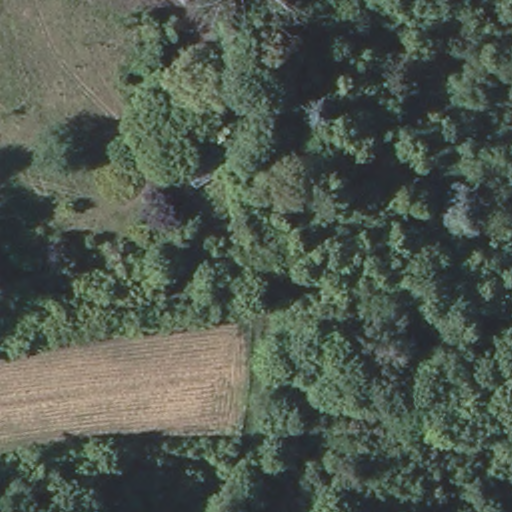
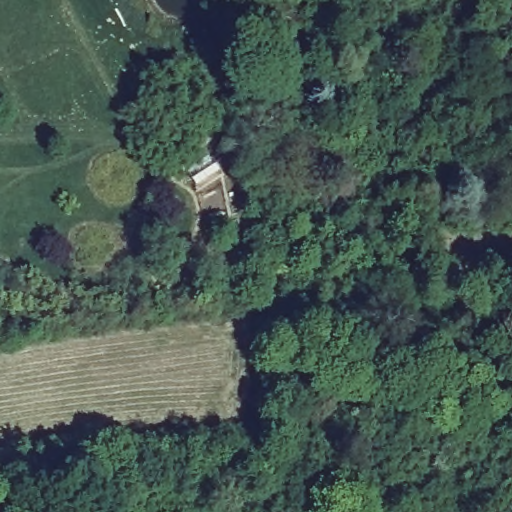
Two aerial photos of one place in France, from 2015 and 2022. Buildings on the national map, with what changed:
unchanged [(222,172),(193,186),(182,170),(210,154),(222,172)]

